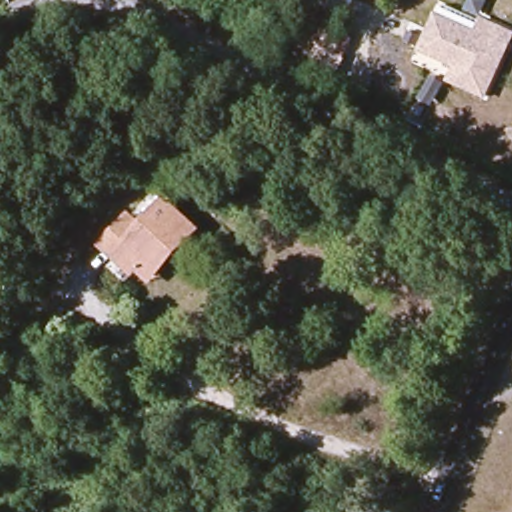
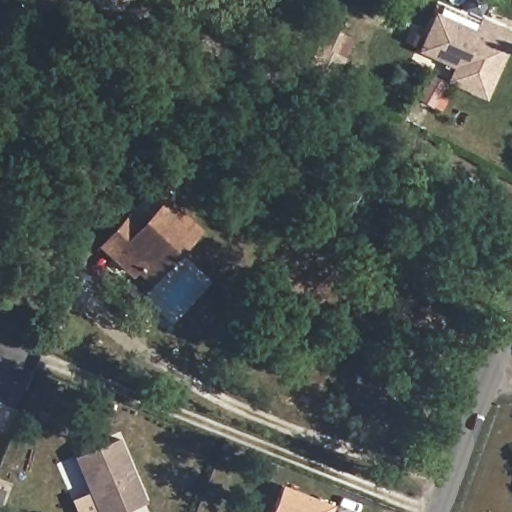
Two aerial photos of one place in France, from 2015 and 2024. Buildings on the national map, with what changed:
unchanged [(505,39),(478,101),(442,86),(448,70),(411,53),(426,22),(467,39),(474,25),(505,39)]
new [(330,26),(347,34),(340,53),(348,57),(341,76),(314,65),(330,26)]
unchanged [(197,233),(150,284),(136,272),(129,279),(95,248),(124,217),(135,227),(160,200),(197,233)]
new [(130,509),(131,512),(97,512),(74,456),(119,438),(146,502),(130,509)]
new [(283,484),(334,506),(332,512),(273,512),(283,484)]

